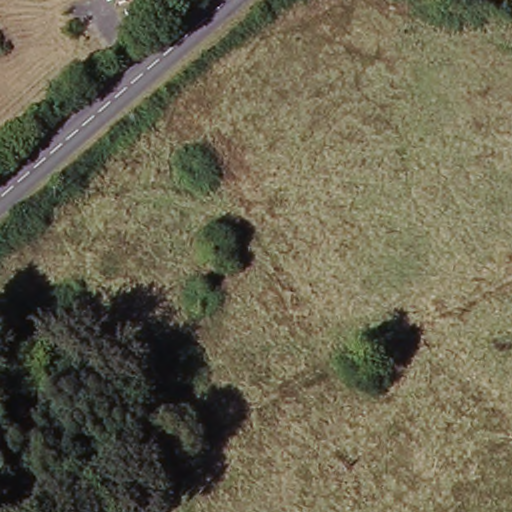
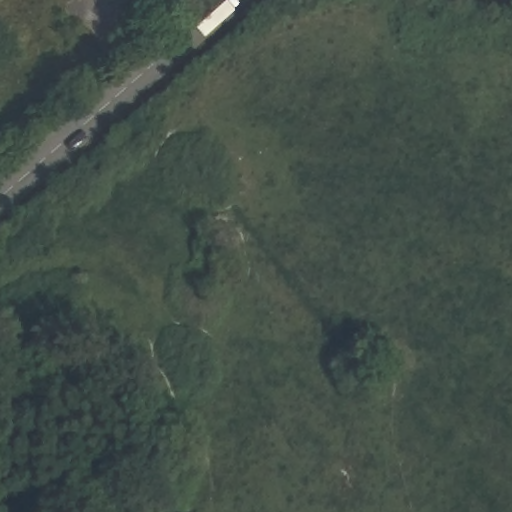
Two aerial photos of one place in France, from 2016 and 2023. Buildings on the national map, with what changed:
unchanged [(113,4),(111,0),(120,0),(113,4)]

